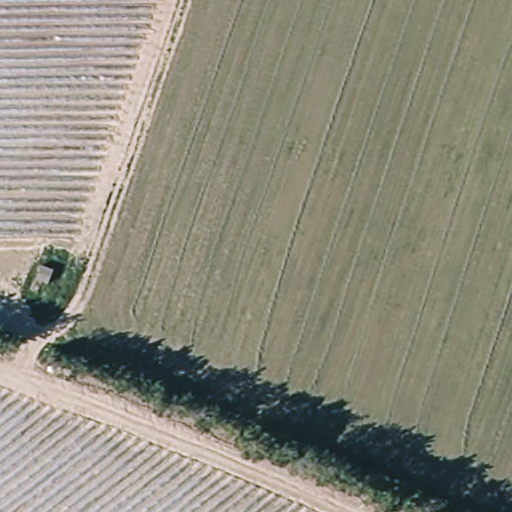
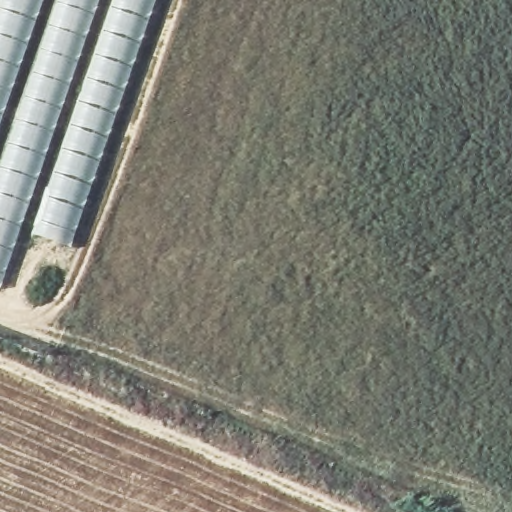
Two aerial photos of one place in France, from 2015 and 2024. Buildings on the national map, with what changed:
new [(71,247),(22,228),(1,290),(0,290),(0,0),(157,0),(71,247)]

